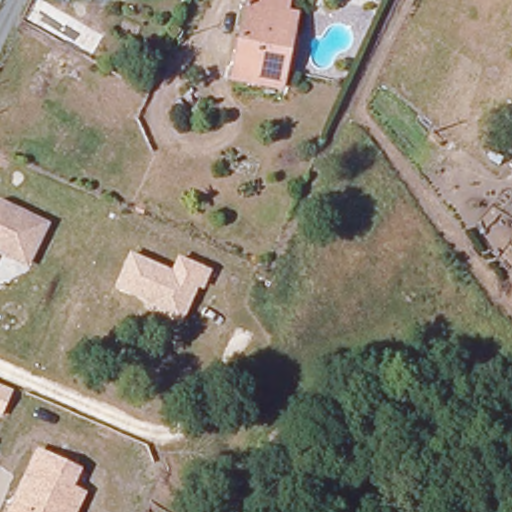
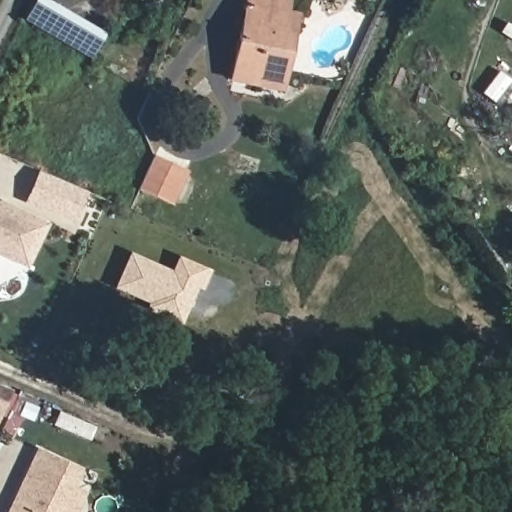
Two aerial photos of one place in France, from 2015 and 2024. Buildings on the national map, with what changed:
new [(89,51),(21,19),(30,0),(45,0),(101,26),(89,51)]
unchanged [(283,0),(280,14),(294,16),(291,38),(281,37),(274,71),(235,66),(245,0),(283,0)]
unchanged [(283,90),(233,82),(235,66),(274,71),(281,37),(291,38),(285,78),(283,90)]
new [(154,155),(189,171),(173,205),(139,189),(154,155)]
new [(25,203),(39,171),(88,193),(74,224),(25,203)]
unchanged [(6,209),(51,225),(34,267),(0,253),(0,224),(1,224),(6,209)]
unchanged [(206,289),(199,285),(184,320),(147,307),(143,298),(120,289),(134,254),(172,269),(176,257),(213,271),(206,289)]
unchanged [(2,423),(0,422),(0,385),(17,393),(2,423)]
unchanged [(75,486),(88,492),(78,512),(5,512),(37,449),(79,468),(75,486)]

